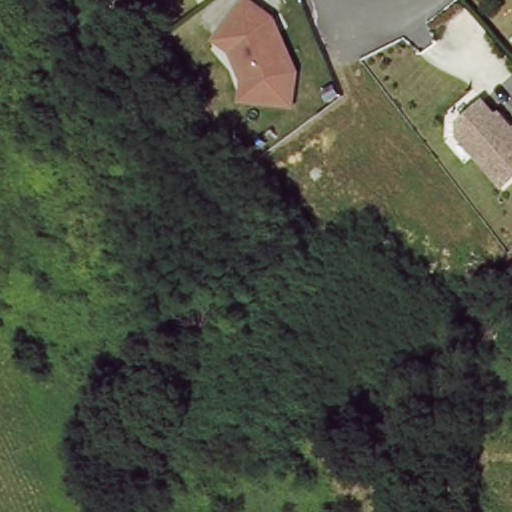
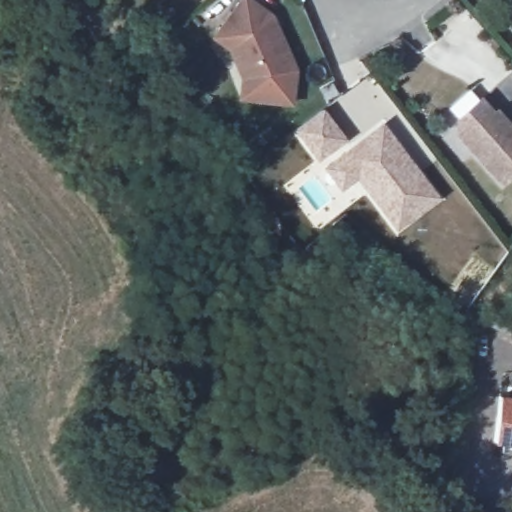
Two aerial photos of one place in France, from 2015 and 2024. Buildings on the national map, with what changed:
unchanged [(213,37),(217,31),(240,0),(248,0),(270,15),(272,21),(293,69),(290,103),(247,98),(240,98),(242,77),(232,54),(229,48),(213,37)]
unchanged [(495,183),(451,133),(452,118),(474,98),(502,130),(512,122),(512,168),(495,183)]
new [(324,106),(350,143),(321,166),(292,130),(324,106)]
new [(350,143),(383,119),(441,196),(397,233),(357,183),(341,194),(321,166),(350,143)]
new [(495,441),(500,396),(512,398),(512,454),(502,453),(504,442),(495,441)]

